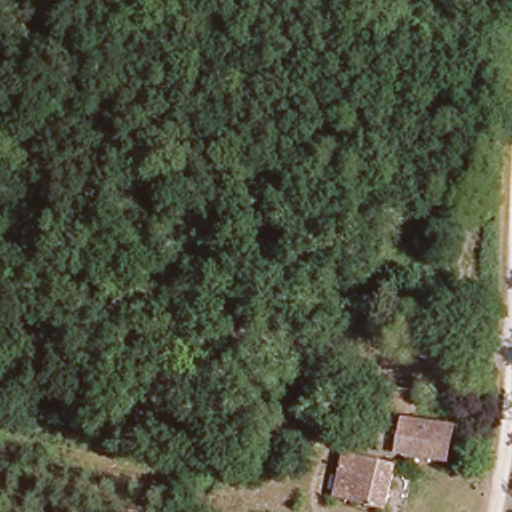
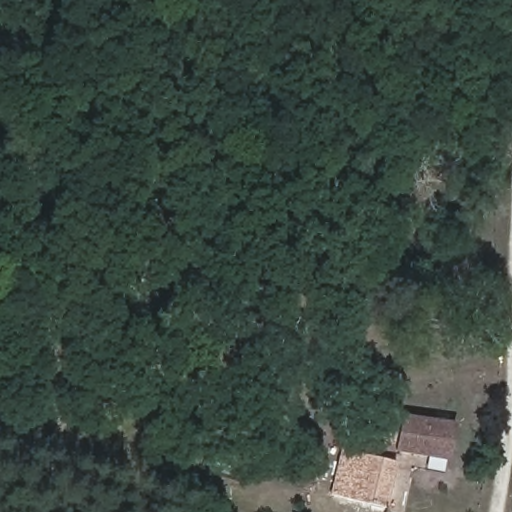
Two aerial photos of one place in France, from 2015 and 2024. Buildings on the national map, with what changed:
unchanged [(457,421),(449,459),(386,446),(393,406),(457,421)]
unchanged [(383,457),(395,460),(385,508),(332,493),(341,462),(363,467),(367,452),(383,457)]

